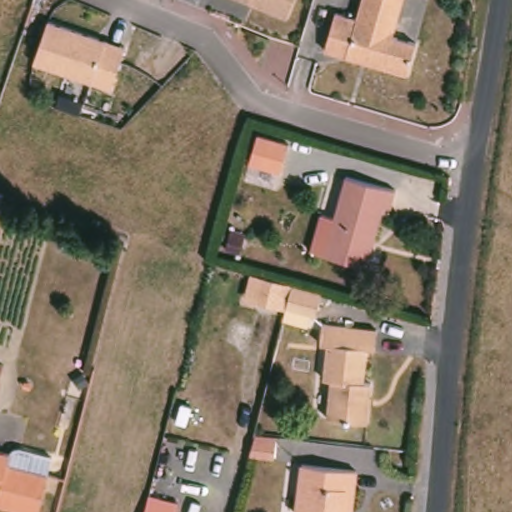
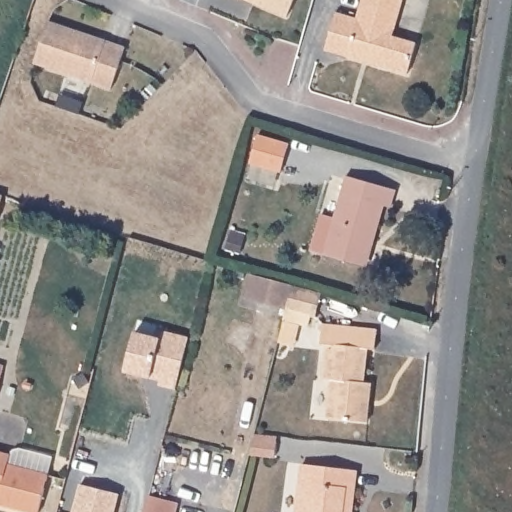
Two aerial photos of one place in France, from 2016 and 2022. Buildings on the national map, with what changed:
unchanged [(282,16),(249,2),(244,0),(289,0),(282,16)]
unchanged [(325,30),(330,12),(351,19),(357,0),(398,0),(387,35),(411,42),(402,74),(341,56),(320,50),(325,30)]
unchanged [(106,88),(32,63),(29,62),(43,20),(46,21),(120,46),(106,88)]
unchanged [(252,134),(283,143),(275,171),(245,163),(252,134)]
unchanged [(362,270),(325,259),(346,181),(395,195),(391,212),(385,211),(374,249),(367,271),(362,270)]
unchanged [(309,293),(322,297),(316,322),(286,313),(293,289),(309,293)]
new [(175,388),(159,385),(160,380),(150,377),(125,371),(136,331),(156,336),(158,330),(189,336),(175,388)]
unchanged [(320,350),(322,330),(349,331),(348,335),(376,337),(374,355),(366,355),(363,387),(371,388),(367,427),(327,424),(331,386),(324,385),(327,351),(320,350)]
unchanged [(249,453),(253,438),(255,432),(276,435),(276,441),(274,457),(249,453)]
new [(10,460),(0,458),(0,451),(12,453),(13,450),(19,447),(53,457),(47,480),(8,469),(10,460)]
unchanged [(8,469),(47,480),(39,512),(11,512),(0,509),(0,458),(10,460),(8,469)]
unchanged [(347,512),(292,512),(298,463),(352,470),(350,489),(347,512)]
new [(72,512),(79,485),(120,492),(115,512),(72,512)]
unchanged [(177,503),(175,512),(145,512),(150,495),(177,503)]

